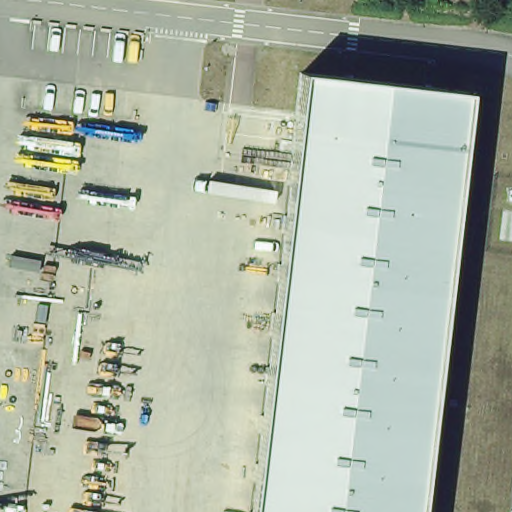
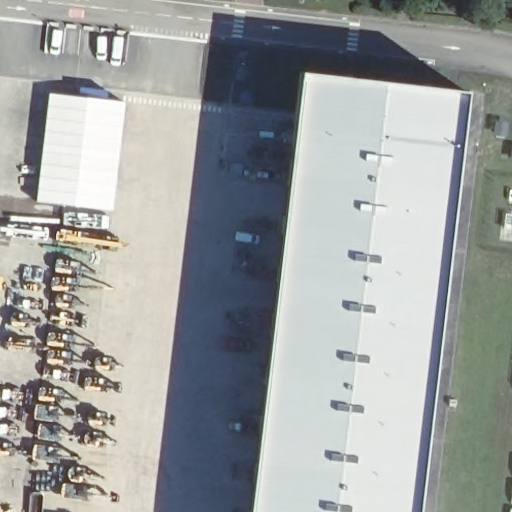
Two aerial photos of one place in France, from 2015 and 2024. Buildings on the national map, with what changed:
unchanged [(420,512),(250,512),(300,79),(469,96),(420,512)]
new [(48,92),(125,101),(112,211),(35,202),(48,92)]

